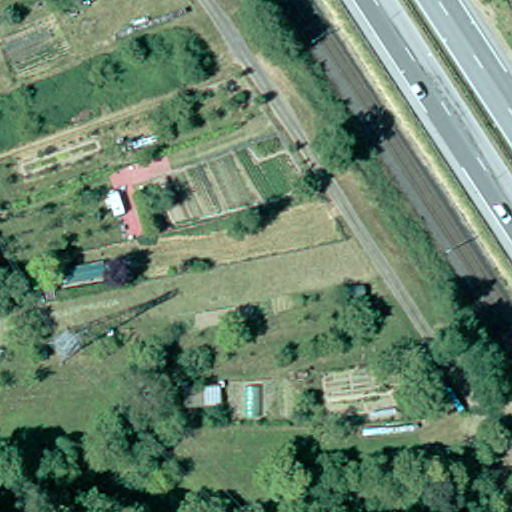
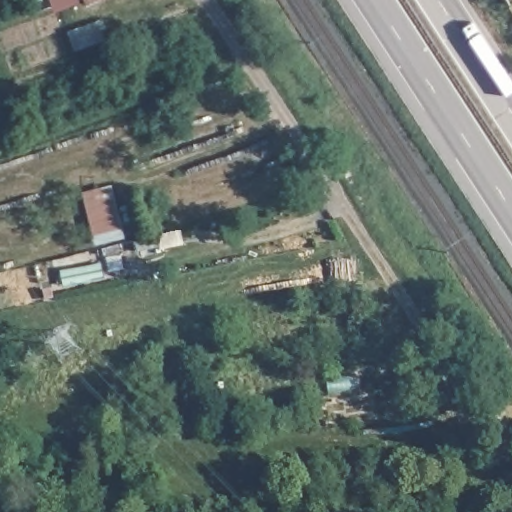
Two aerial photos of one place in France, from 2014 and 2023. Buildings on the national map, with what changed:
new [(124,238),(96,244),(84,190),(113,182),(124,238)]

